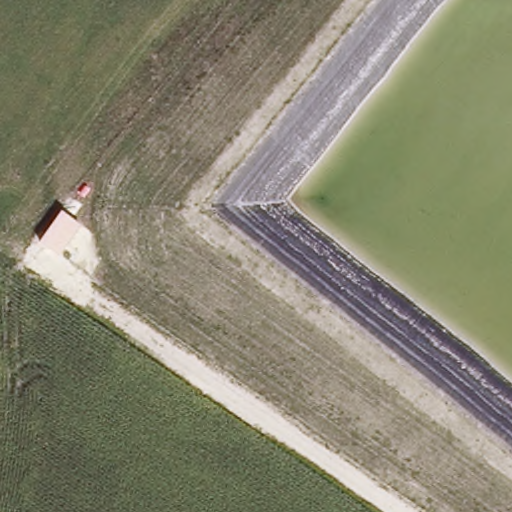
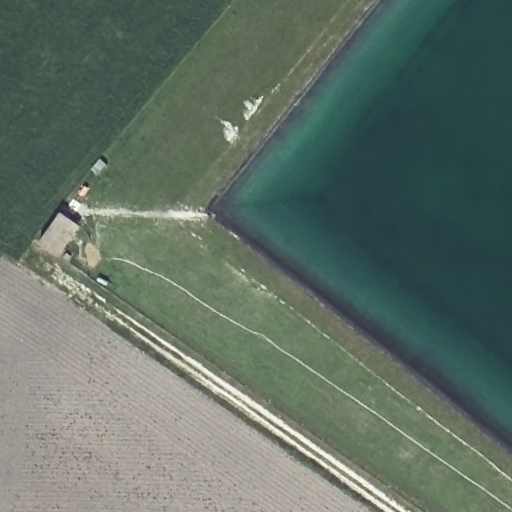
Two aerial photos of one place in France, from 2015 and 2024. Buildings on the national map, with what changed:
unchanged [(82,227),(59,259),(40,245),(63,212),(82,227)]

